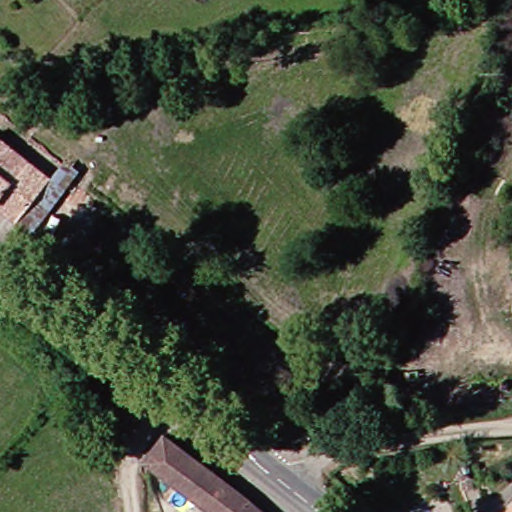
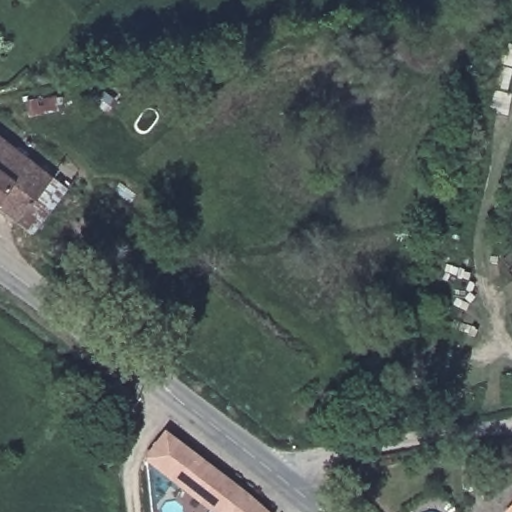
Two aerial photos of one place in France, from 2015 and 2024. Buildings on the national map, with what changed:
unchanged [(17,223),(0,209),(0,148),(46,184),(62,197),(32,235),(17,223)]
unchanged [(158,319),(165,323),(160,330),(153,325),(158,319)]
unchanged [(142,461),(161,435),(254,512),(201,512),(142,461)]

